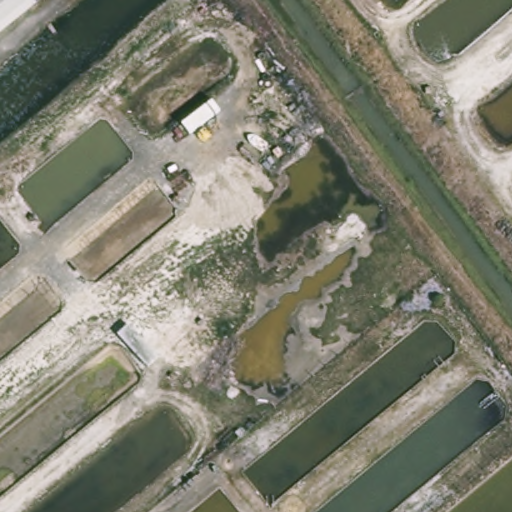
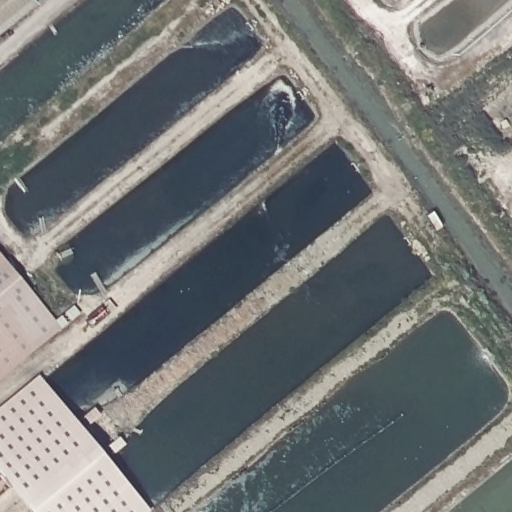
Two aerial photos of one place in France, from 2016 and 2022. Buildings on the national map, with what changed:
unchanged [(32,0),(36,5),(0,34),(0,0),(32,0)]
new [(55,318),(60,313),(67,322),(0,377),(0,253),(55,318)]
new [(0,474),(0,405),(38,373),(150,510),(149,512),(31,512),(0,474)]

